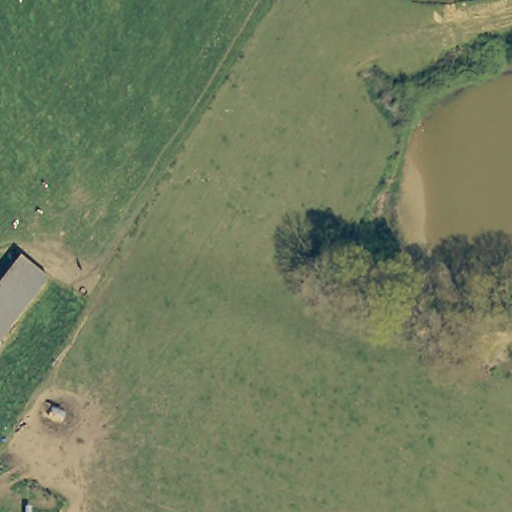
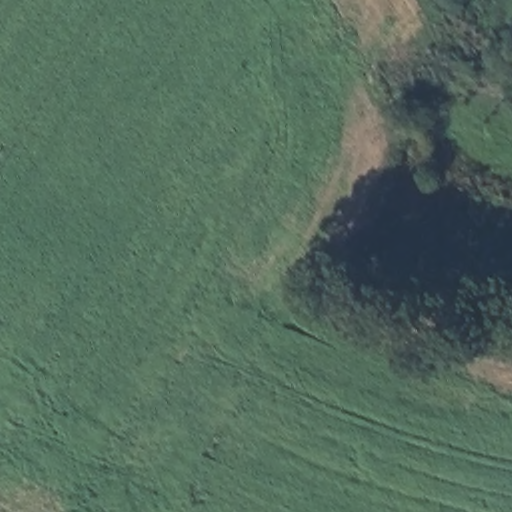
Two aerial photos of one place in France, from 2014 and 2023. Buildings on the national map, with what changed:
demolished [(23,256),(27,260),(51,276),(0,338),(0,286),(23,256)]

